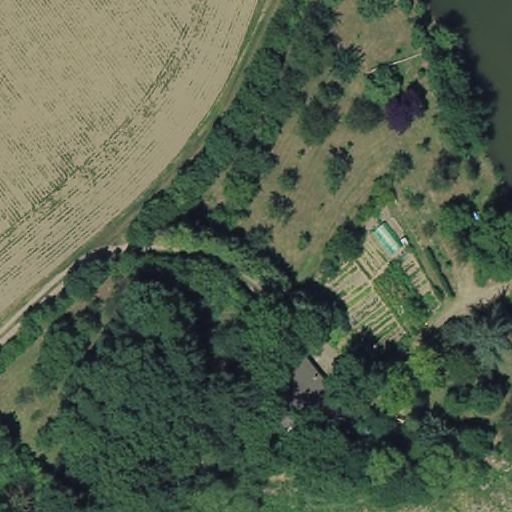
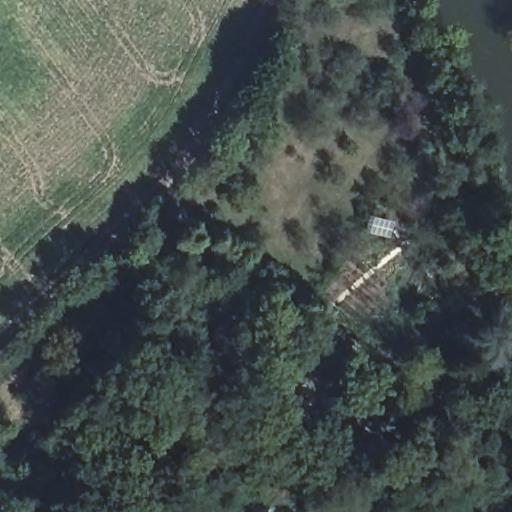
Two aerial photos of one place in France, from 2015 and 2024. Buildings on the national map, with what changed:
unchanged [(244,393),(264,381),(250,363),(277,337),(335,390),(277,436),(244,393)]

